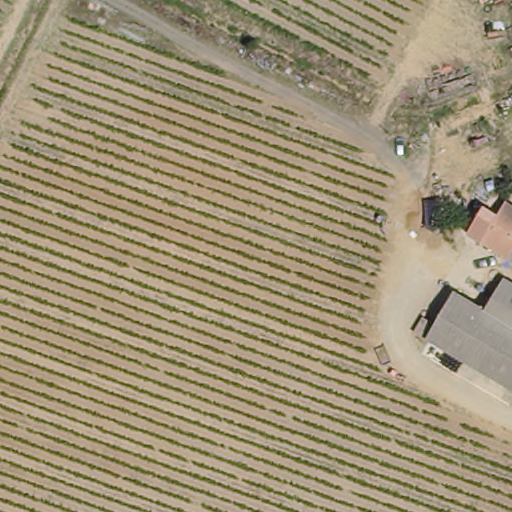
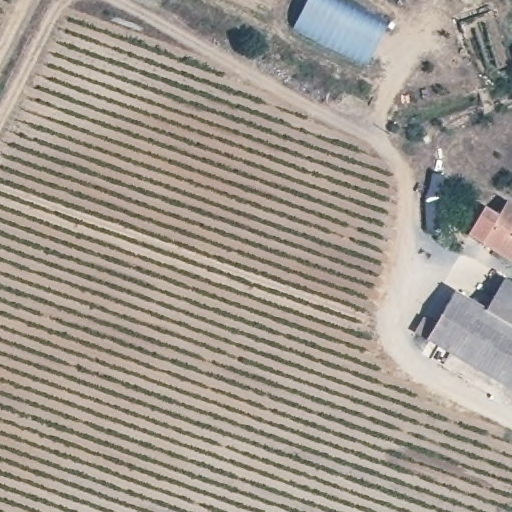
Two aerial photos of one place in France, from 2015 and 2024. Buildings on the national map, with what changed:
new [(293,27),(307,0),(338,0),(387,25),(366,64),(293,27)]
unchanged [(512,206),(512,250),(491,240),(477,233),(490,206),(504,213),(509,205),(512,206)]
unchanged [(494,305),(511,273),(512,273),(512,316),(494,305)]
unchanged [(432,339),(459,288),(494,305),(512,316),(512,383),(432,339)]

